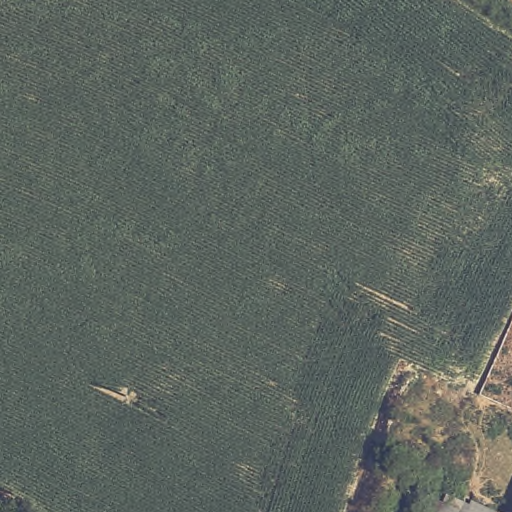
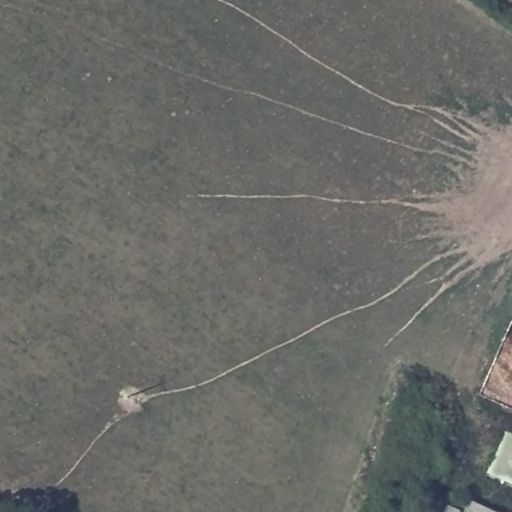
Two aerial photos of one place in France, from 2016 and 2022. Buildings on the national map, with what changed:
unchanged [(448,508),(453,498),(470,507),(467,512),(431,512),(435,502),(448,508)]
unchanged [(479,503),(498,512),(475,512),(476,511),(479,503)]

